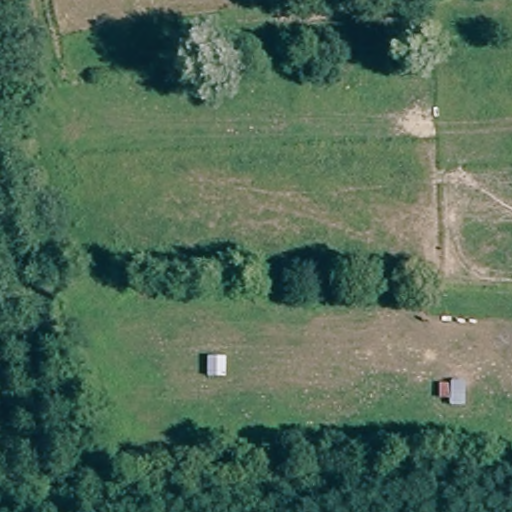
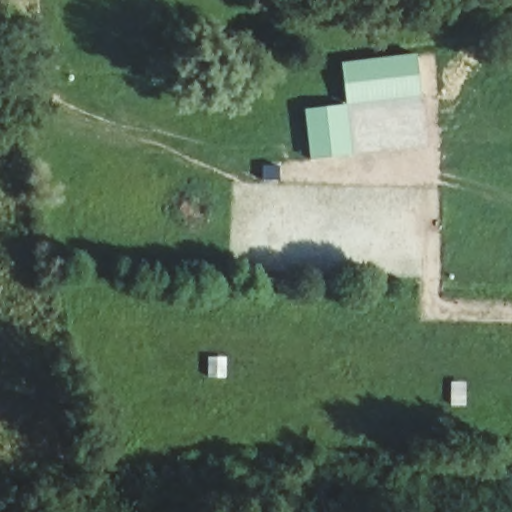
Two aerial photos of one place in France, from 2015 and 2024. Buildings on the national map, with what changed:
new [(415,54),(420,96),(346,104),(340,62),(415,54)]
new [(351,154),(310,160),(304,110),(345,104),(351,154)]

